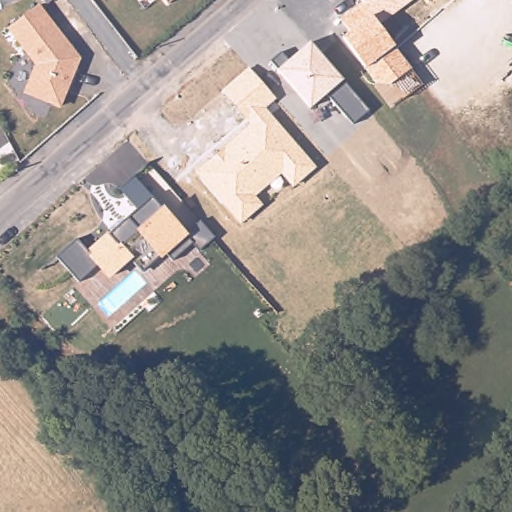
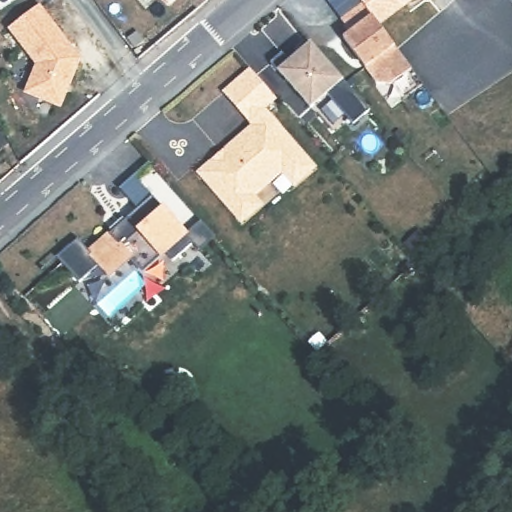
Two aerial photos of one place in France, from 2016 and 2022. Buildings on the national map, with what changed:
unchanged [(167,5),(163,0),(174,0),(167,5)]
unchanged [(380,25),(362,2),(361,0),(415,0),(380,25)]
unchanged [(411,69),(390,85),(376,85),(364,69),(343,38),(349,32),(340,19),(362,2),(380,25),(411,69)]
unchanged [(34,65),(7,30),(39,5),(81,58),(61,110),(23,95),(34,65)]
unchanged [(352,124),(329,95),(310,110),(277,70),(310,42),(344,81),(368,112),(352,124)]
unchanged [(294,188),(281,174),(255,196),(262,207),(241,225),(195,172),(250,125),(221,91),(249,67),(277,100),(266,110),(317,168),(294,188)]
unchanged [(200,252),(193,244),(173,261),(167,255),(161,260),(159,258),(143,272),(132,259),(107,280),(97,266),(78,282),(58,257),(79,239),(88,250),(136,208),(119,189),(133,176),(161,207),(186,233),(201,221),(215,239),(200,252)]

